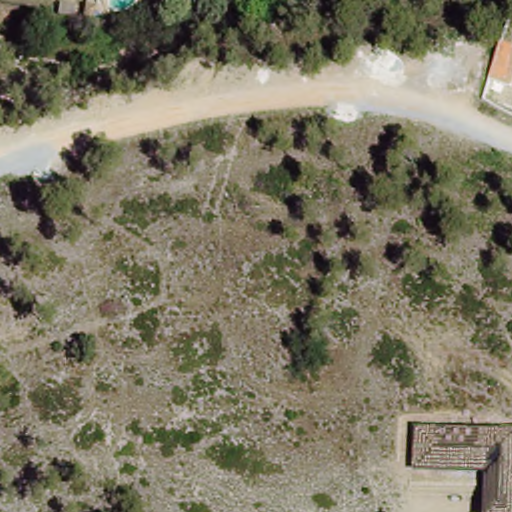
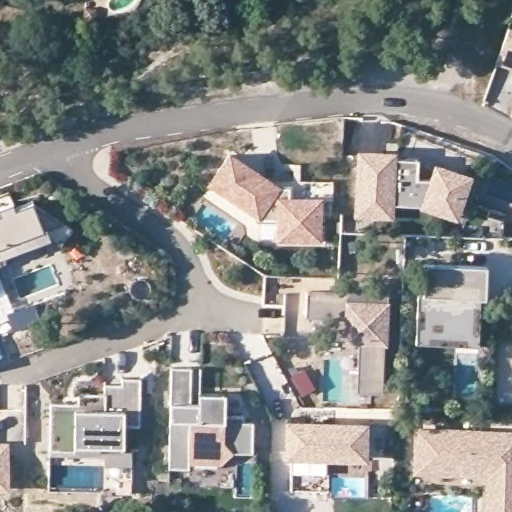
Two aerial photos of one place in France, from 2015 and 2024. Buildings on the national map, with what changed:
new [(512,29),(512,68),(496,63),(507,27),(512,29)]
new [(396,151),(395,160),(417,161),(433,169),(434,161),(472,174),(458,217),(422,204),(394,204),(394,219),(356,218),(357,150),(396,151)]
unchanged [(228,160),(274,192),(286,192),(287,204),(317,204),(317,244),(278,244),(278,225),(257,225),(257,222),(209,189),(228,160)]
new [(7,203),(8,209),(26,202),(27,205),(55,224),(65,230),(53,248),(42,241),(0,256),(0,205),(7,203)]
new [(421,295),(422,263),(486,267),(485,299),(479,299),(477,347),(418,344),(421,295)]
new [(306,295),(348,297),(348,307),(385,308),(382,397),(359,396),(361,344),(346,344),(347,320),(305,319),(306,295)]
new [(171,420),(171,403),(172,368),(191,369),(190,404),(199,404),(200,394),(225,394),(224,417),(243,416),(243,424),(252,424),(251,452),(231,451),(218,464),(187,462),(187,469),(169,468),(171,420)]
new [(103,493),(103,464),(104,457),(48,454),(50,403),(78,404),(78,394),(104,396),(105,386),(122,387),(122,379),(140,379),(139,426),(123,426),(123,450),(130,451),(130,464),(129,494),(103,493)]
new [(285,460),(286,419),(367,422),(366,461),(285,460)]
unchanged [(512,432),(512,512),(484,512),(485,477),(413,474),(416,429),(512,432)]
new [(0,489),(0,441),(8,441),(9,489),(0,489)]

